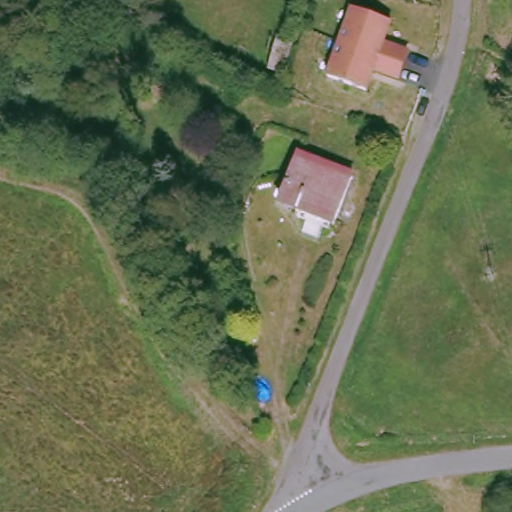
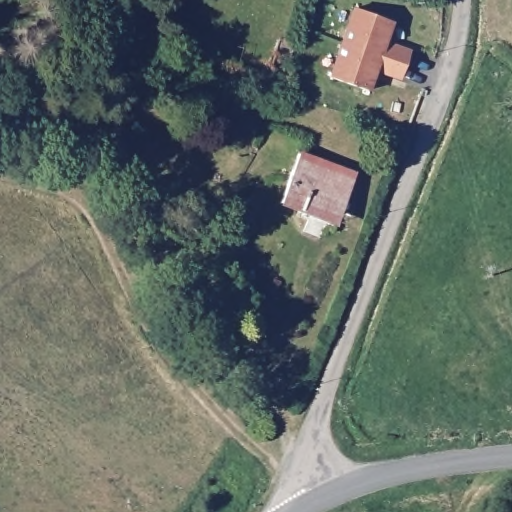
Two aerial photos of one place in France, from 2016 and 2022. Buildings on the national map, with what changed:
unchanged [(394,21),(386,42),(410,50),(400,77),(376,69),(368,89),(330,75),(357,6),(394,21)]
unchanged [(350,167),(327,222),(292,208),(295,200),(278,194),(298,145),(350,167)]

